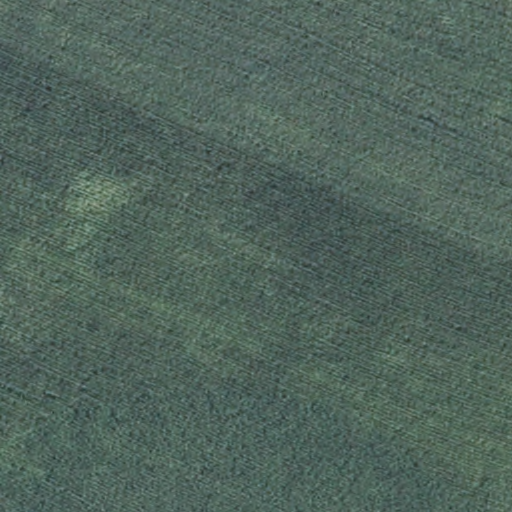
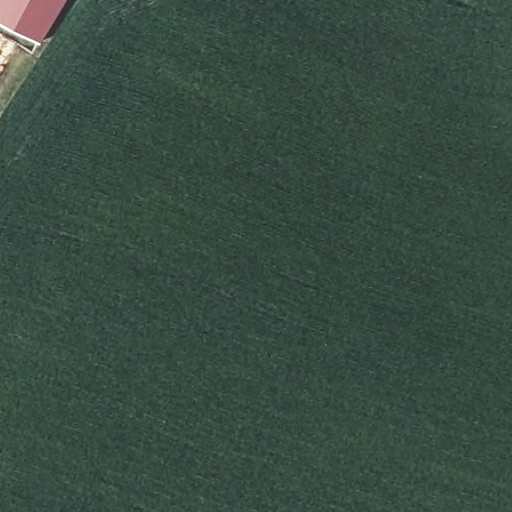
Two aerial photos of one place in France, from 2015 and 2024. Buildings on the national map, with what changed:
new [(0,18),(0,0),(64,0),(43,39),(0,18)]

